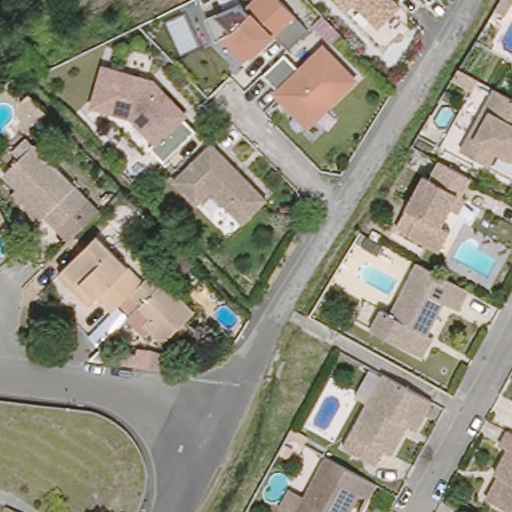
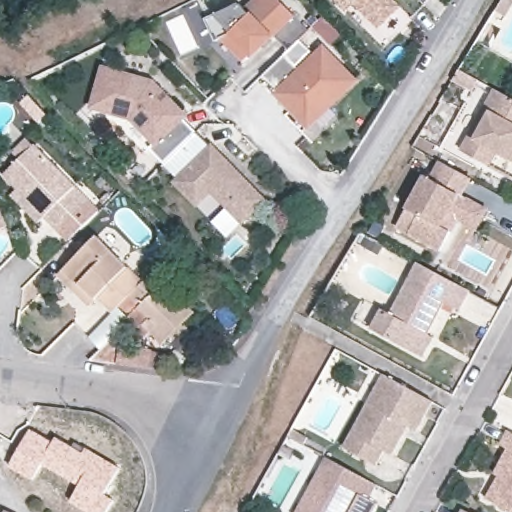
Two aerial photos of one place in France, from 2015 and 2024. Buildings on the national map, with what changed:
unchanged [(243,0),(244,0),(249,7),(256,0),(284,0),(309,26),(291,45),(278,35),(251,62),(208,15),(243,0)]
unchanged [(403,3),(384,23),(357,2),(350,8),(342,0),(400,0),(403,3)]
unchanged [(506,19),(495,14),(504,0),(512,0),(512,8),(506,19)]
unchanged [(286,54),(301,66),(324,45),(360,81),(314,127),(263,74),(286,54)]
unchanged [(133,119),(94,107),(103,60),(156,73),(201,131),(164,157),(133,119)]
unchanged [(478,81),(471,93),(452,83),(456,77),(460,71),(478,81)]
unchanged [(496,163),(466,147),(500,85),(512,91),(512,172),(496,163)]
unchanged [(16,189),(23,183),(9,169),(26,154),(18,147),(31,134),(93,195),(65,224),(50,210),(43,217),(16,189)]
unchanged [(216,139),(271,194),(248,218),(217,186),(201,201),(178,177),(216,139)]
unchanged [(468,200),(459,215),(450,210),(441,226),(450,232),(439,252),(397,229),(424,178),(429,180),(440,162),(471,179),(462,196),(468,200)]
unchanged [(70,269),(74,265),(108,231),(153,277),(141,290),(124,307),(109,292),(106,294),(99,300),(70,269)]
unchanged [(428,358),(416,351),(376,330),(387,310),(394,314),(422,262),(476,292),(465,312),(451,304),(433,335),(439,338),(428,358)]
unchanged [(161,312),(141,290),(153,277),(164,267),(204,307),(173,338),(161,326),(154,318),(161,312)]
unchanged [(397,452),(387,446),(380,456),(351,439),(371,400),(387,370),(394,374),(438,397),(422,428),(413,423),(408,431),(397,452)]
new [(53,440),(55,436),(83,451),(85,447),(119,467),(104,494),(113,500),(106,512),(88,512),(69,501),(78,486),(43,464),(33,479),(9,465),(29,428),(53,440)]
unchanged [(504,445),(512,431),(512,450),(504,445)]
unchanged [(359,490),(347,512),(295,512),(326,453),(375,480),(367,495),(359,490)]
unchanged [(499,474),(512,453),(512,510),(496,502),(491,499),(503,477),(499,474)]
unchanged [(18,512),(3,512),(6,505),(18,512)]
demolished [(465,512),(469,506),(481,512),(465,512)]
unchanged [(467,512),(463,512),(464,511),(467,512)]

